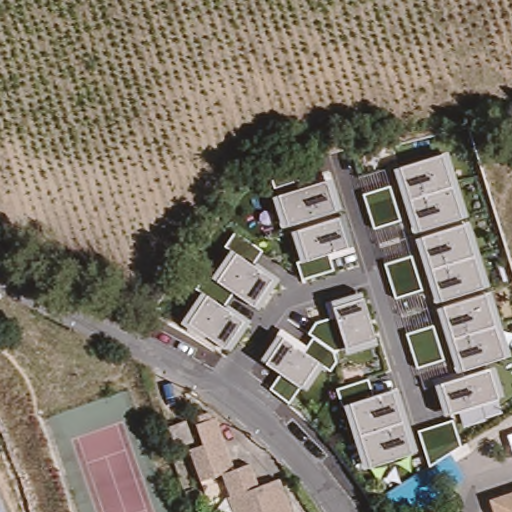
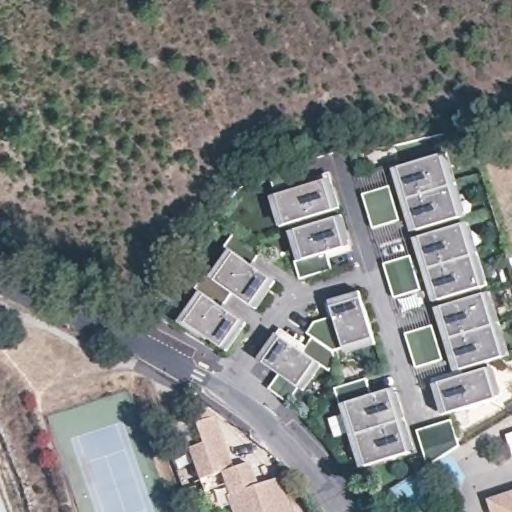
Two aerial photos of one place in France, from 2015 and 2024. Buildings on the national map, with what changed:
unchanged [(447,152),(465,215),(414,230),(395,167),(447,152)]
unchanged [(272,196),(276,195),(270,171),(302,161),(309,185),(331,179),(341,209),(281,227),(272,196)]
unchanged [(374,227),(368,211),(363,194),(390,186),(395,202),(400,219),(374,227)]
unchanged [(292,233),(342,217),(353,246),(328,254),(334,272),(302,281),(295,262),(300,263),(292,233)]
unchanged [(469,222),(487,284),(435,300),(415,237),(469,222)]
unchanged [(229,252),(224,247),(235,234),(262,251),(254,264),(277,278),(260,310),(237,295),(228,310),(247,321),(228,351),(183,320),(201,294),(195,289),(208,270),(212,278),(229,252)]
unchanged [(396,298),(385,263),(412,255),(423,290),(396,298)]
unchanged [(305,391),(299,387),(289,403),(270,388),(280,374),(259,359),(278,333),(283,328),(308,346),(315,336),(308,332),(319,320),(336,317),(331,301),(360,292),(374,337),(378,344),(347,353),(345,347),(335,351),(336,361),(328,371),(322,367),(305,391)]
unchanged [(490,292),(507,356),(456,371),(437,308),(490,292)]
unchanged [(417,368),(406,333),(432,325),(444,357),(417,368)]
unchanged [(504,394),(499,397),(502,415),(465,427),(460,410),(444,415),(434,384),(490,369),(495,367),(504,394)]
unchanged [(362,467),(343,407),(336,388),(368,379),(375,396),(398,388),(415,448),(362,467)]
unchanged [(196,481),(185,448),(199,443),(199,442),(193,427),(192,423),(213,417),(230,468),(247,462),(254,485),(276,477),(287,512),(212,512),(208,511),(196,481)]
unchanged [(429,466),(418,431),(453,420),(462,446),(429,466)]
unchanged [(165,427),(184,421),(192,442),(173,449),(165,427)]
unchanged [(512,492),(512,512),(499,512),(495,497),(512,492)]
unchanged [(0,512),(0,493),(7,512),(0,512)]

